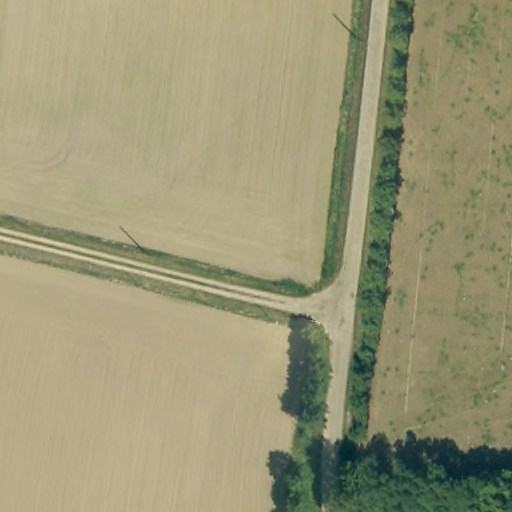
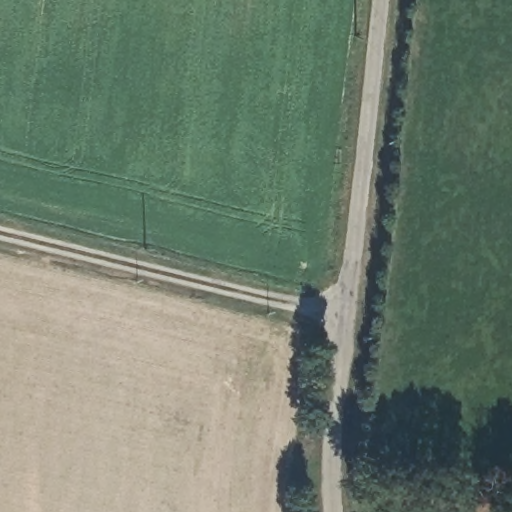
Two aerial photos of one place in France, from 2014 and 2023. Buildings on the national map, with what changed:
[]

